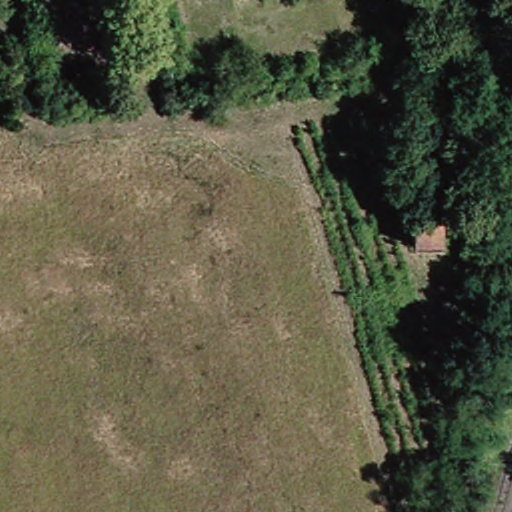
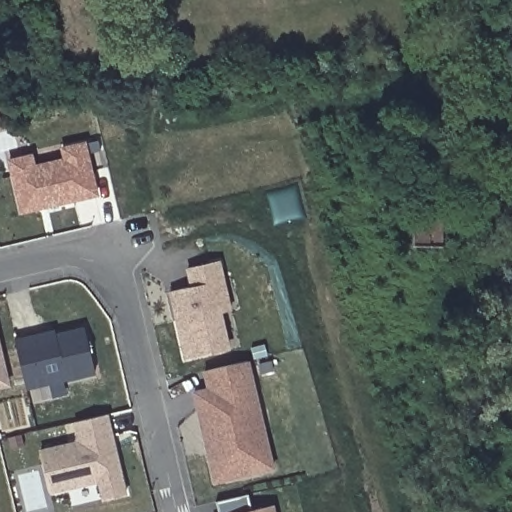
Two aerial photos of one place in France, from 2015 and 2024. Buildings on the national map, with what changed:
new [(20,212),(8,161),(30,156),(32,167),(64,160),(61,149),(84,144),(96,195),(46,206),(37,208),(20,212)]
unchanged [(443,242),(412,241),(413,210),(443,210),(443,242)]
new [(185,359),(170,292),(191,287),(187,270),(219,262),(225,292),(216,294),(228,349),(185,359)]
new [(216,294),(225,292),(230,311),(220,313),(216,294)]
new [(56,330),(57,333),(85,327),(96,376),(27,391),(15,338),(56,330)]
new [(7,385),(0,387),(0,355),(7,385)]
new [(260,472),(216,482),(194,393),(209,390),(204,372),(247,362),(266,437),(273,468),(260,472)]
new [(74,420),(107,412),(112,434),(115,443),(126,493),(104,498),(100,480),(50,491),(40,449),(79,440),(74,420)]
new [(215,502),(247,495),(251,509),(261,507),(271,505),(273,512),(217,512),(215,502)]

